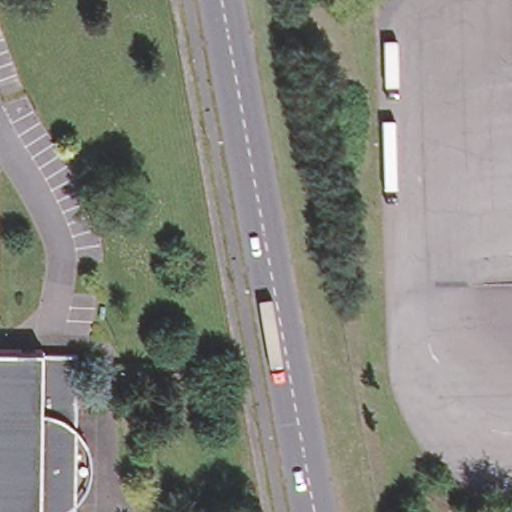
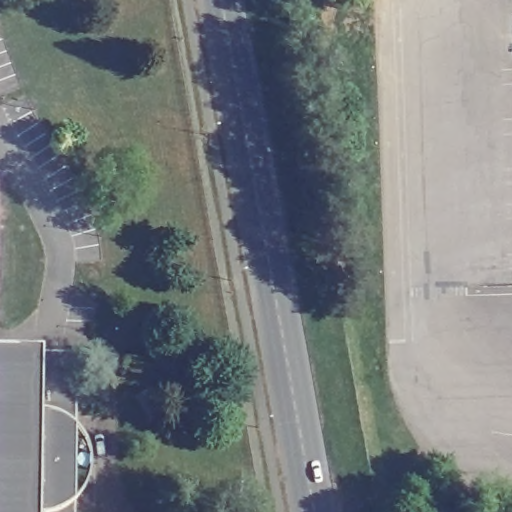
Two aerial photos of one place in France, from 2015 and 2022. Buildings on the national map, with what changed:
unchanged [(37,347),(38,512),(0,512),(0,343),(37,344),(37,347)]
unchanged [(87,444),(90,452),(90,463),(85,476),(82,482),(71,492),(71,512),(38,512),(37,347),(70,347),(71,425),(77,430),(87,444)]

